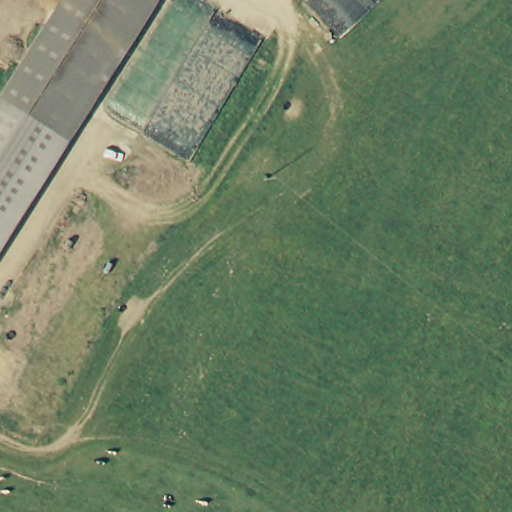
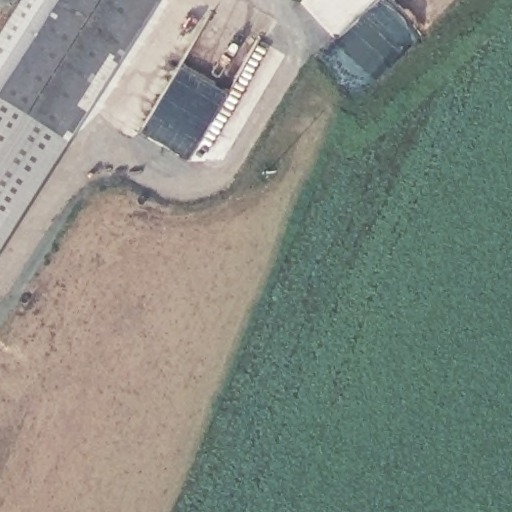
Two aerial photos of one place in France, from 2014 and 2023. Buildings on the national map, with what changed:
new [(17,0),(59,0),(0,100),(0,27),(17,0)]
unchanged [(50,133),(0,102),(0,100),(59,0),(132,0),(50,133)]
unchanged [(0,245),(0,102),(50,133),(132,0),(155,0),(0,245)]

